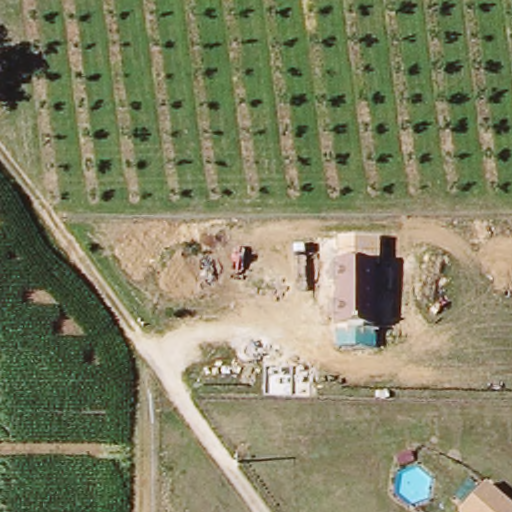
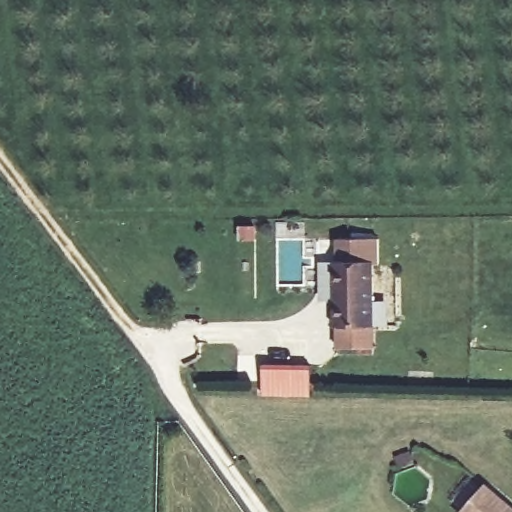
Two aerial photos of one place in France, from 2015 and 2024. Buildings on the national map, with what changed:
unchanged [(336,348),(335,328),(334,263),(339,262),(338,238),(378,239),(378,261),(375,260),(375,327),(375,348),(336,348)]
new [(262,394),(263,369),(268,364),(311,366),(310,396),(262,394)]
unchanged [(485,485),(512,508),(512,512),(463,512),(485,485)]

